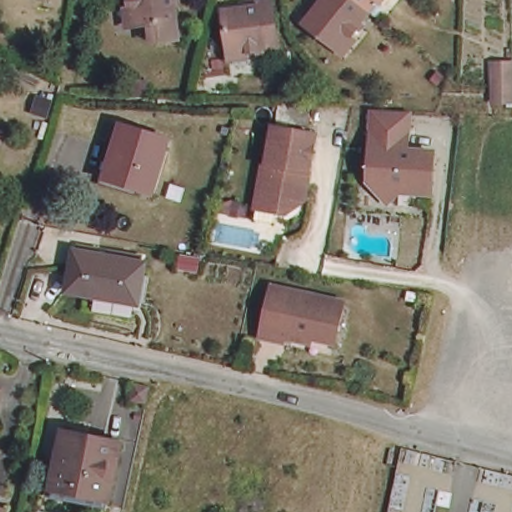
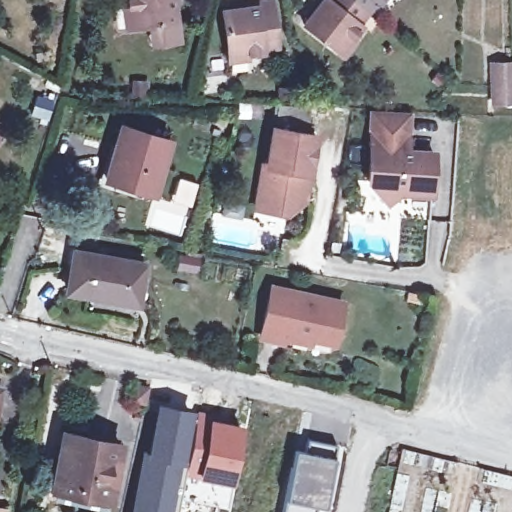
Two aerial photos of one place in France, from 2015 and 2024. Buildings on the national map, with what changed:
unchanged [(135,25),(132,0),(182,0),(182,1),(177,1),(181,38),(163,41),(154,41),(153,23),(135,25)]
unchanged [(301,25),(321,0),(359,0),(354,5),(346,16),(356,24),(334,51),(301,25)]
unchanged [(370,0),(377,0),(374,3),(370,0)]
unchanged [(257,61),(223,65),(218,21),(249,17),(249,12),(266,11),(270,47),(256,49),(257,61)]
unchanged [(492,101),(492,85),(491,61),(512,61),(512,86),(512,101),(492,101)]
unchanged [(146,96),(132,95),(133,84),(147,84),(146,96)]
unchanged [(313,124),(283,122),(284,104),(313,106),(313,124)]
unchanged [(407,119),(405,144),(404,149),(412,149),(413,144),(432,146),(429,173),(410,172),(409,184),(397,183),(384,193),(367,174),(371,116),(407,119)]
unchanged [(261,196),(267,161),(271,161),(278,124),(319,131),(312,170),(307,198),(301,196),(300,203),(289,210),(279,209),(259,205),(261,196)]
unchanged [(151,192),(103,177),(110,156),(113,157),(123,125),(168,139),(151,192)]
unchanged [(196,269),(179,266),(181,253),(199,257),(196,269)]
unchanged [(141,307),(73,295),(80,256),(148,268),(141,307)]
unchanged [(280,345),(265,342),(276,291),(346,306),(337,347),(315,342),(314,347),(281,340),(280,345)]
new [(231,483),(184,474),(177,512),(129,512),(142,448),(146,449),(156,401),(228,417),(228,421),(243,424),(231,483)]
unchanged [(105,502),(50,490),(63,429),(119,441),(105,502)]
new [(296,450),(306,452),(308,440),(335,446),(329,458),(336,459),(324,507),(316,506),(315,512),(283,512),(296,450)]
unchanged [(0,509),(3,509),(2,512),(0,512),(0,509)]

